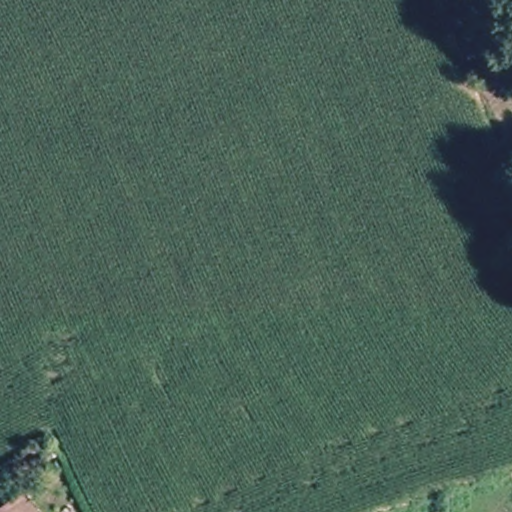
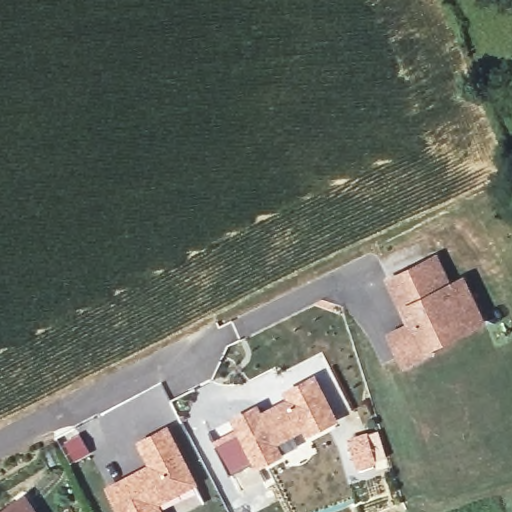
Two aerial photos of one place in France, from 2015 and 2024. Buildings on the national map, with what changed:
new [(402,367),(387,332),(404,323),(383,277),(437,252),(451,282),(465,275),(486,322),(402,367)]
new [(254,468),(230,418),(258,404),(262,411),(285,401),(281,393),(315,376),(337,421),(306,437),(303,432),(280,442),(286,455),(254,468)]
new [(106,487),(147,465),(136,442),(169,426),(197,485),(160,504),(164,512),(118,512),(106,487)]
unchanged [(0,503),(6,499),(19,490),(33,511),(34,512),(0,512),(0,503)]

